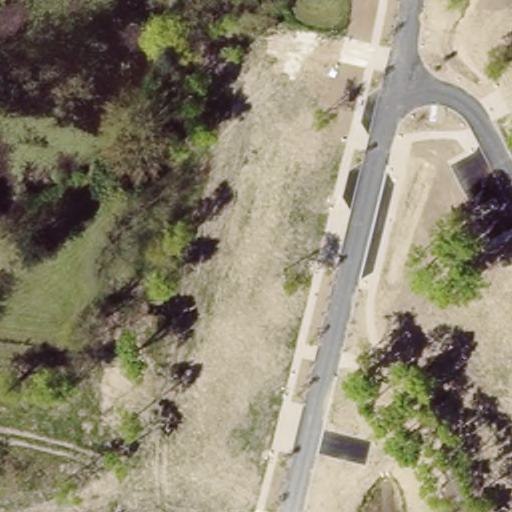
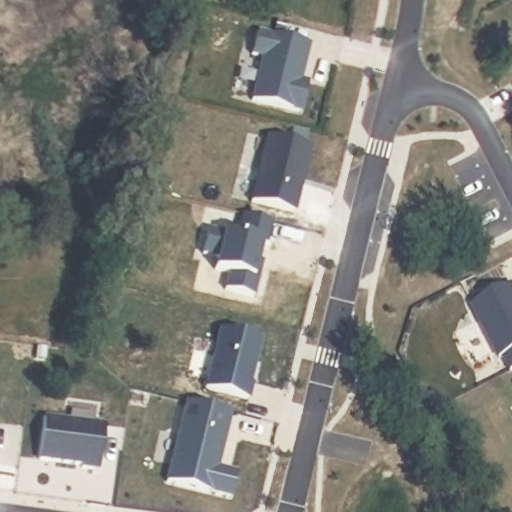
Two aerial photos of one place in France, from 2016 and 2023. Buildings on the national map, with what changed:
new [(250,101),(260,60),(251,58),(257,31),(311,45),(302,80),(309,82),(301,114),(250,101)]
new [(296,213),(252,202),(251,207),(235,204),(238,183),(253,185),(264,136),(312,148),(296,213)]
new [(225,290),(231,275),(213,271),(215,260),(201,257),(208,229),(221,233),(262,242),(258,261),(265,263),(256,300),(225,290)]
new [(504,359),(501,360),(471,306),(512,284),(512,371),(510,372),(504,359)]
new [(220,468),(237,472),(231,499),(166,483),(186,403),(233,414),(220,468)]
new [(100,471),(81,469),(81,465),(37,461),(43,417),(105,425),(100,471)]

